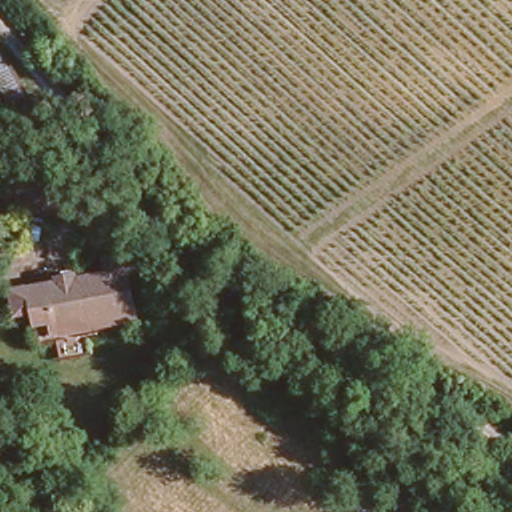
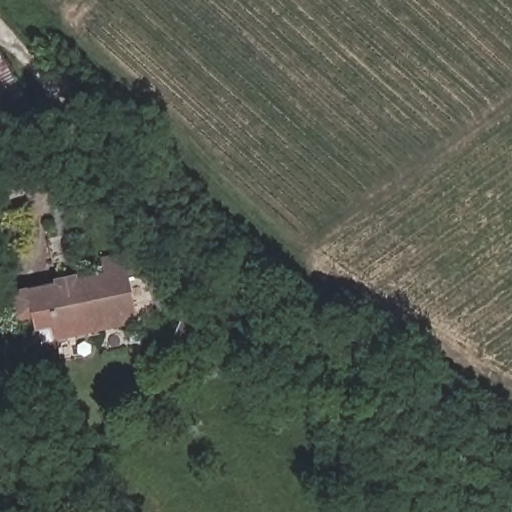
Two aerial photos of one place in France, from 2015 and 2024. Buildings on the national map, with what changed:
unchanged [(2,85),(10,106),(0,109),(0,80),(2,85)]
unchanged [(1,147),(5,158),(0,160),(0,147),(1,147)]
unchanged [(133,269),(141,316),(93,325),(92,317),(64,323),(62,307),(40,311),(41,287),(133,269)]

